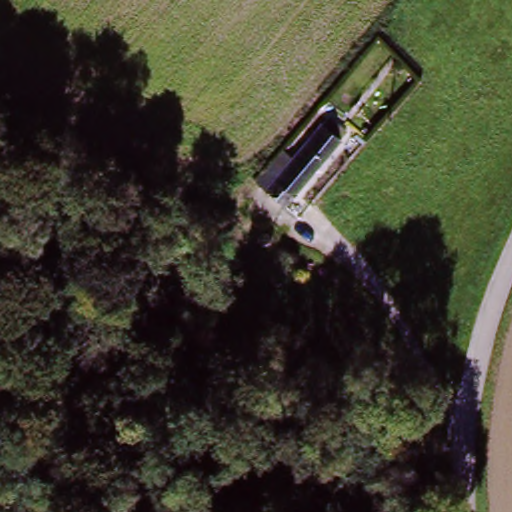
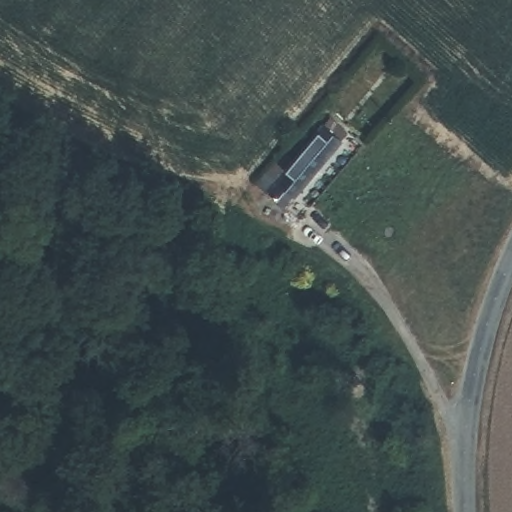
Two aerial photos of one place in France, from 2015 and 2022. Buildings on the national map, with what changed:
unchanged [(260,198),(277,180),(330,116),(347,132),(292,194),(281,205),(260,198)]

